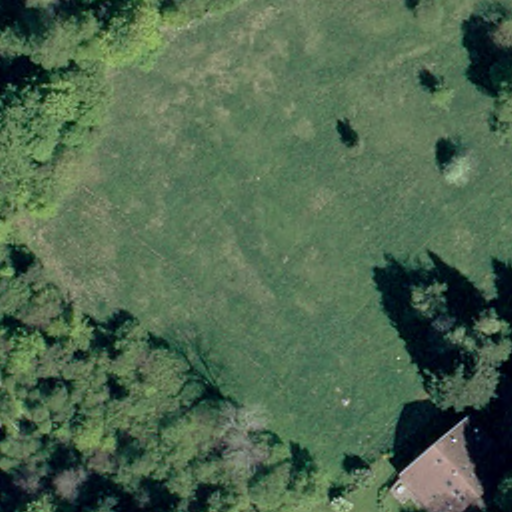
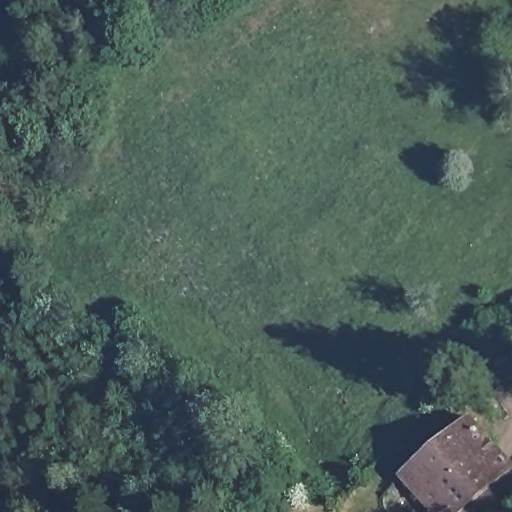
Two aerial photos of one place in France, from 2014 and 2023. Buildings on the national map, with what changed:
unchanged [(426,512),(417,502),(397,481),(465,418),(508,465),(455,512),(426,512)]

